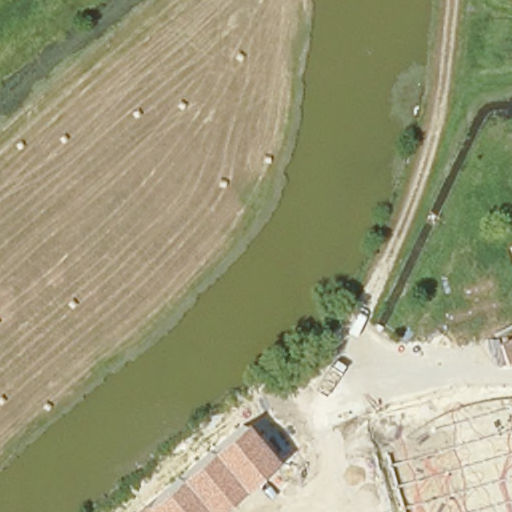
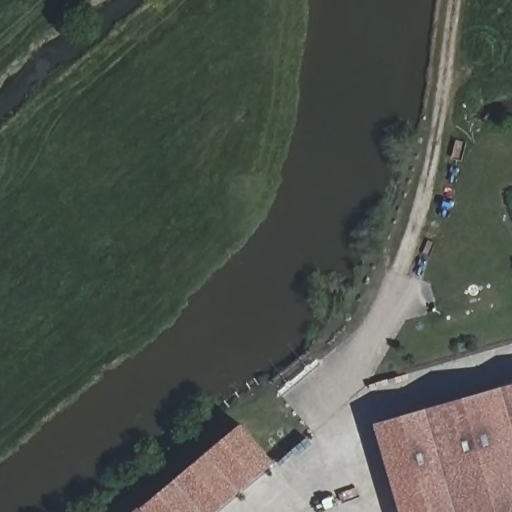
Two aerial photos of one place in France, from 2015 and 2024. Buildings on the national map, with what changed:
demolished [(491,392),(487,383),(476,353),(512,342),(512,385),(491,392)]
new [(374,422),(426,407),(501,385),(512,382),(512,512),(402,512),(374,422)]
demolished [(512,466),(512,512),(402,512),(386,452),(498,422),(512,466)]
unchanged [(216,512),(137,512),(244,424),(275,462),(216,512)]

